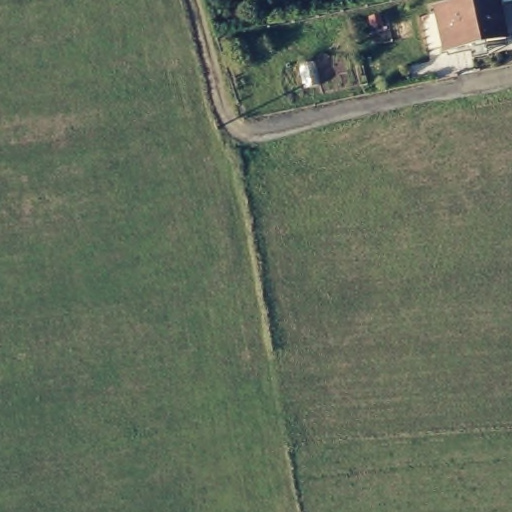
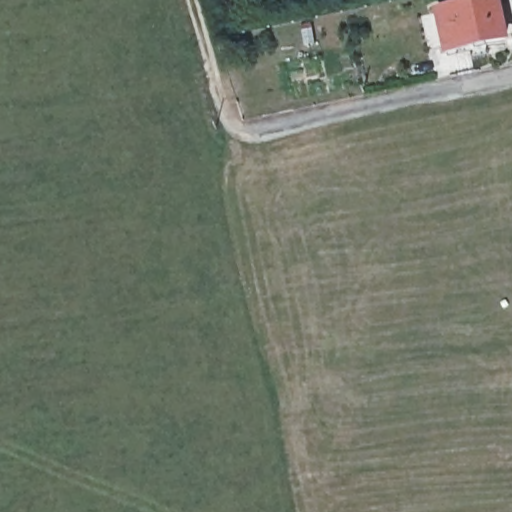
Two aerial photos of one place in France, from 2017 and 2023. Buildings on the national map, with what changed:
unchanged [(466,42),(442,47),(434,7),(468,0),(494,0),(502,34),(481,38),(484,50),(468,54),(466,42)]

